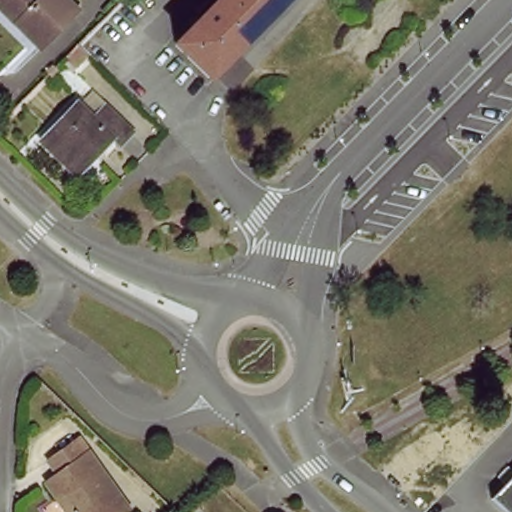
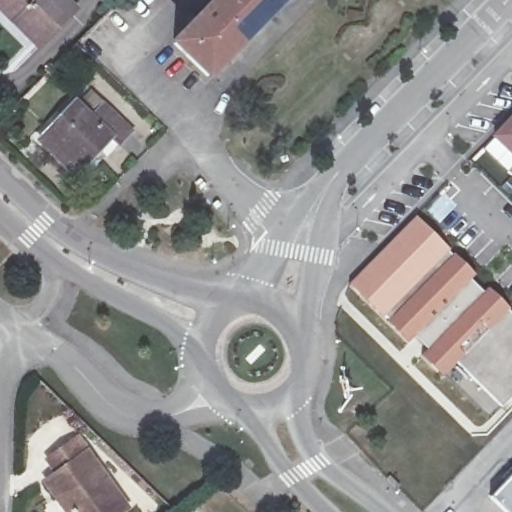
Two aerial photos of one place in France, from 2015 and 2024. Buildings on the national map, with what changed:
unchanged [(0,12),(0,0),(63,0),(75,11),(46,41),(37,50),(15,27),(0,12)]
unchanged [(170,48),(218,0),(282,0),(203,80),(170,48)]
unchanged [(60,59),(75,42),(87,54),(72,70),(60,59)]
unchanged [(117,146),(110,140),(75,175),(39,139),(75,102),(80,107),(92,95),(102,105),(129,134),(117,146)]
new [(512,130),(512,153),(500,143),(512,130)]
new [(512,399),(488,424),(343,287),(410,221),(512,319),(512,399)]
unchanged [(50,490),(62,480),(50,467),(78,446),(129,512),(128,512),(66,512),(62,507),(50,490)]
unchanged [(512,512),(505,512),(489,498),(512,476),(512,512)]

